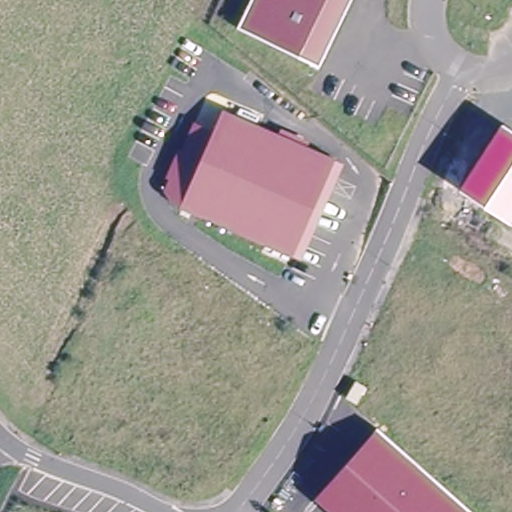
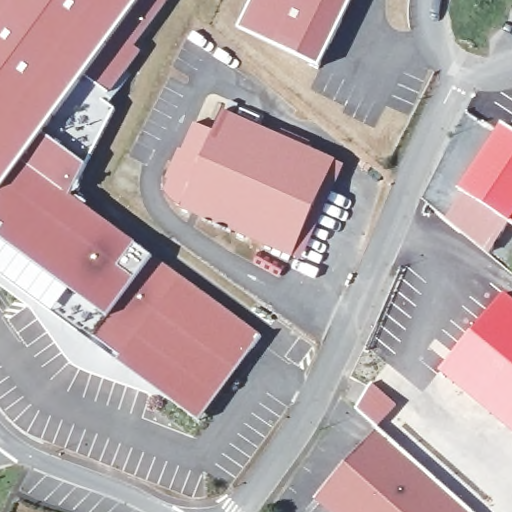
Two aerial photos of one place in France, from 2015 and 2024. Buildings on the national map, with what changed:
new [(118,361),(121,357),(95,337),(92,341),(0,275),(0,0),(166,0),(134,45),(140,50),(103,99),(115,109),(86,165),(70,196),(154,257),(261,334),(200,421),(118,361)]
unchanged [(250,0),(352,0),(317,68),(236,29),(250,0)]
unchanged [(275,133),(278,126),(305,139),(303,145),(341,161),(299,259),(213,223),(176,206),(162,192),(167,169),(196,120),(214,129),(221,110),(275,133)]
unchanged [(512,129),(512,224),(459,188),(503,123),(512,129)]
new [(510,223),(490,255),(447,219),(465,192),(510,223)]
new [(512,298),(512,430),(440,371),(505,293),(512,298)]
unchanged [(473,512),(332,512),(317,499),(376,429),(473,512)]

